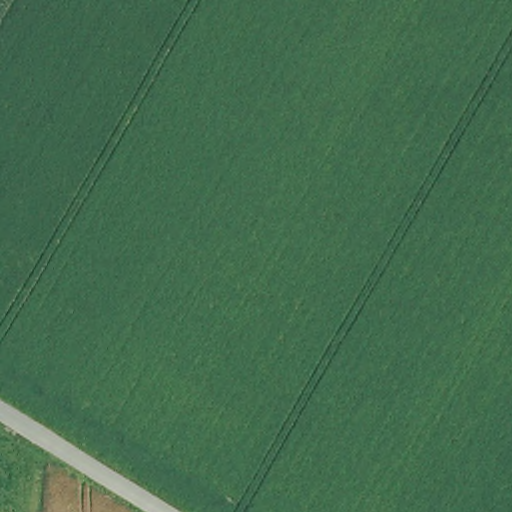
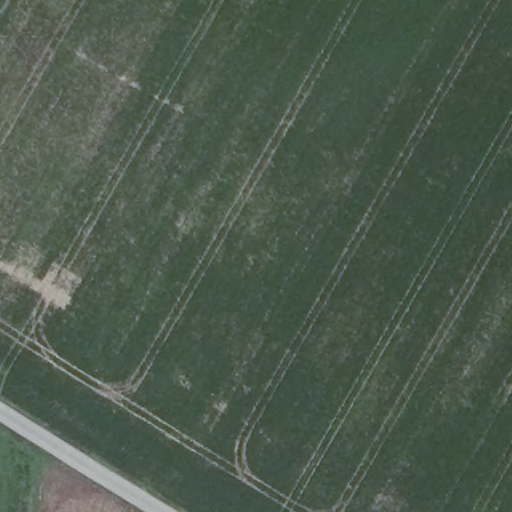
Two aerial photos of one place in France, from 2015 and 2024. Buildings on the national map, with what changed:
[]

